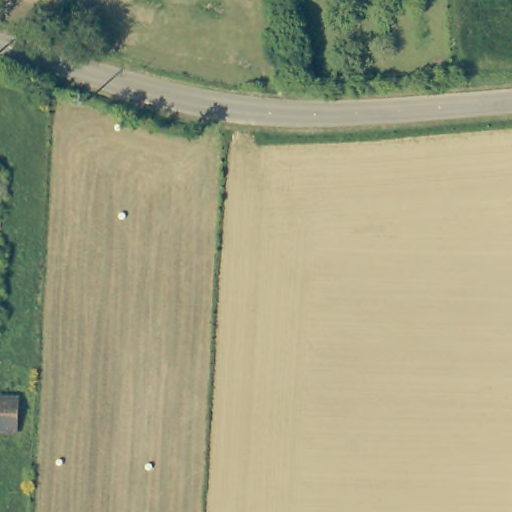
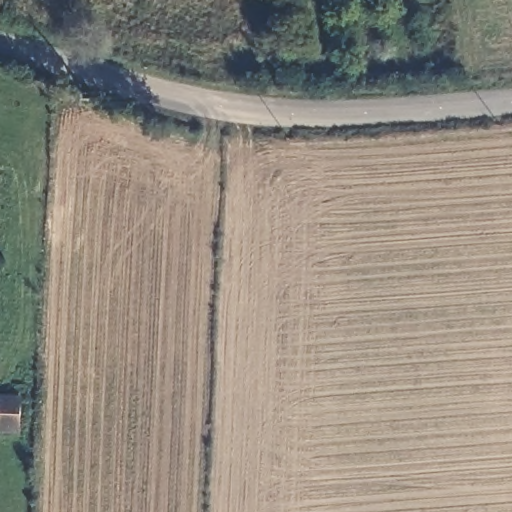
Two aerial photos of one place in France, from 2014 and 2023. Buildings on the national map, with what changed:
unchanged [(17,433),(0,432),(0,395),(19,395),(17,433)]

